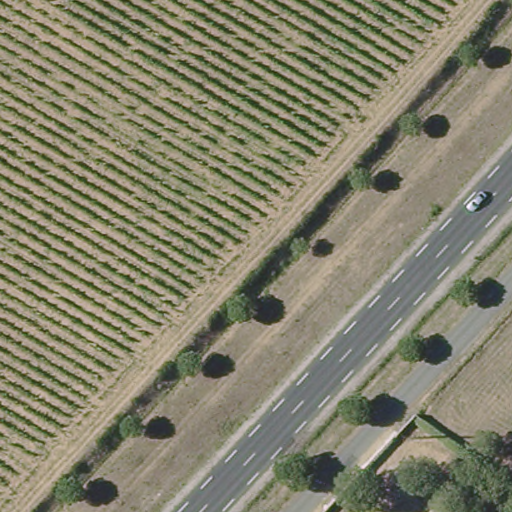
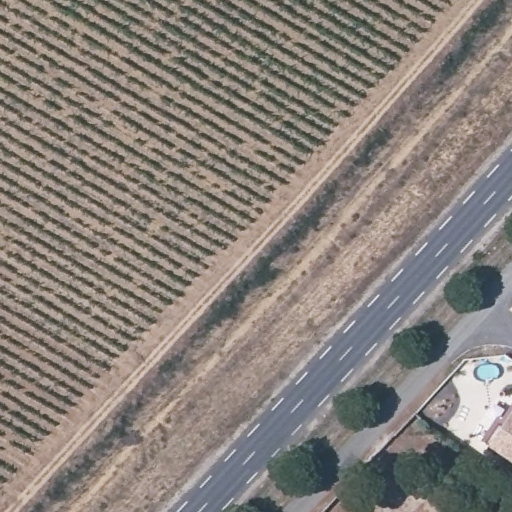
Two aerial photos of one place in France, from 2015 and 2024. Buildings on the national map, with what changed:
new [(497,425),(501,428),(512,412),(512,465),(483,445),(497,425)]

